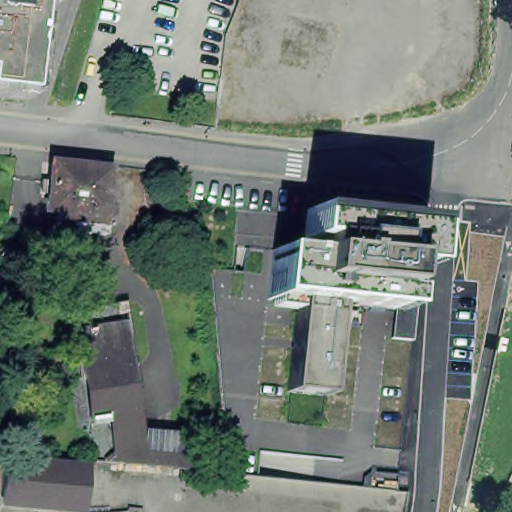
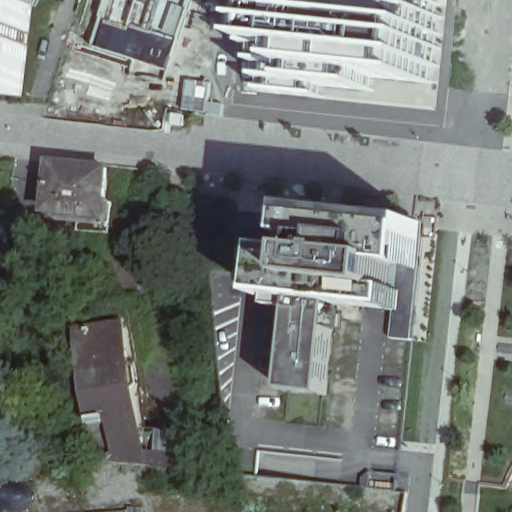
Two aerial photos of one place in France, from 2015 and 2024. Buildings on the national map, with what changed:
unchanged [(0,93),(0,0),(33,0),(22,95),(0,93)]
new [(55,111),(90,0),(198,0),(156,123),(55,111)]
new [(281,7),(283,0),(436,0),(440,4),(439,19),(442,19),(440,47),(442,48),(440,66),(432,66),(430,82),(417,92),(366,85),(365,93),(367,101),(314,95),(315,106),(267,102),(268,91),(265,88),(263,85),(264,81),(264,79),(267,57),(265,57),(260,53),(259,49),(260,33),(257,32),(259,15),(270,7),(281,7)]
unchanged [(104,202),(111,203),(109,234),(80,231),(80,222),(61,220),(59,218),(58,216),(59,213),(44,211),(47,193),(37,192),(39,180),(48,180),(50,163),(73,165),(107,168),(104,202)]
unchanged [(310,253),(310,241),(300,240),(304,212),(423,226),(419,270),(412,340),(393,337),(402,310),(337,305),(327,395),(287,392),(295,311),(272,308),(270,298),(272,250),(310,253)]
demolished [(209,265),(215,353),(216,387),(187,386),(190,302),(182,302),(165,265),(209,265)]
unchanged [(105,461),(97,460),(90,418),(92,418),(87,378),(85,379),(78,332),(87,331),(85,314),(84,310),(87,309),(128,303),(138,370),(129,371),(137,417),(100,420),(105,461)]
unchanged [(105,461),(100,420),(137,417),(136,432),(185,437),(191,438),(189,469),(105,461)]
unchanged [(10,500),(15,461),(89,470),(84,509),(10,500)]

